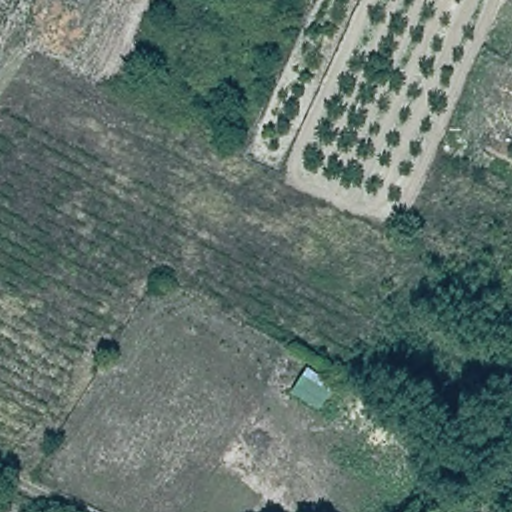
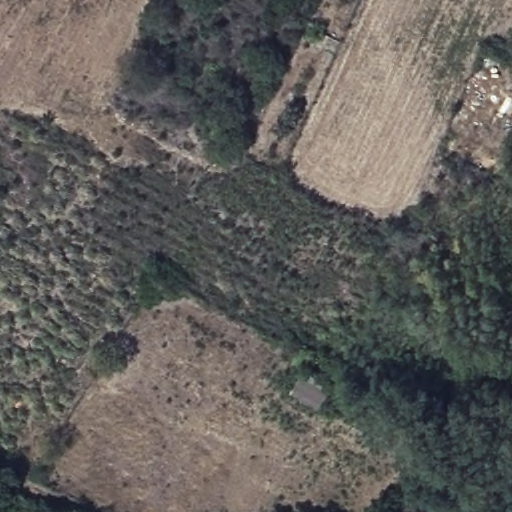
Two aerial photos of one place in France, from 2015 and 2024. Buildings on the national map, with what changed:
unchanged [(308,364),(335,382),(316,414),(287,393),(308,364)]

